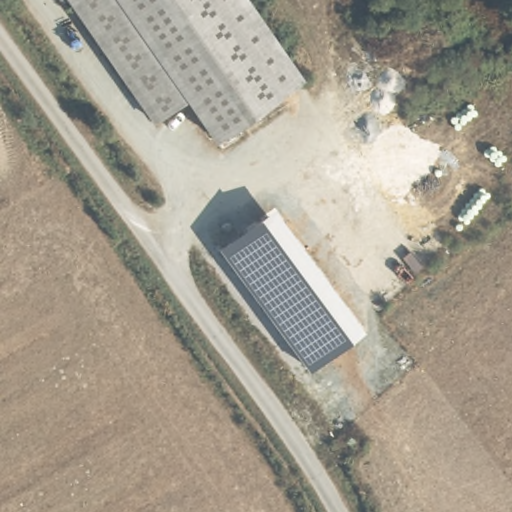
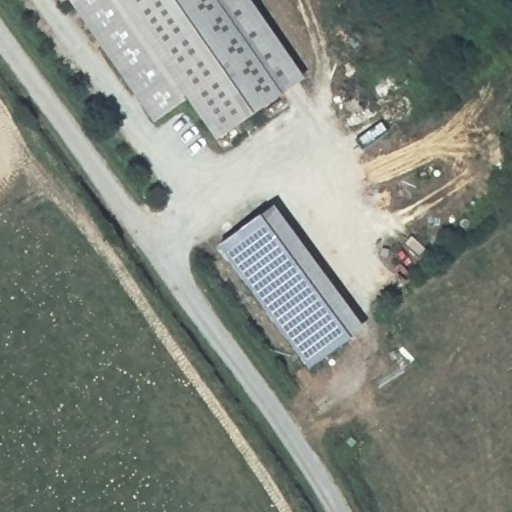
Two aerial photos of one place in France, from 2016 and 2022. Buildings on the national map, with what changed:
unchanged [(158,119),(74,0),(124,0),(191,95),(158,119)]
unchanged [(124,0),(252,0),(306,75),(260,107),(220,136),(191,95),(124,0)]
unchanged [(310,367),(220,247),(272,205),(365,327),(310,367)]

